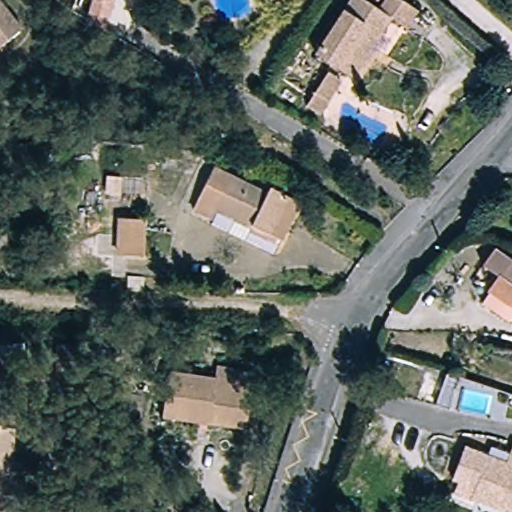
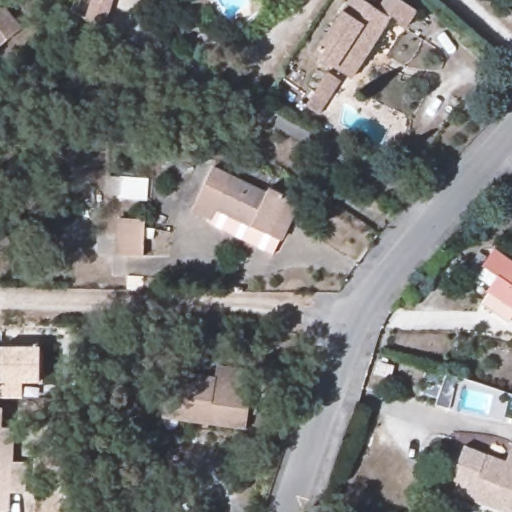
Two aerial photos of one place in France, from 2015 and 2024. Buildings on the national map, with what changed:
unchanged [(79,25),(93,0),(119,0),(99,36),(79,25)]
unchanged [(284,0),(266,2),(266,0),(284,0)]
unchanged [(354,0),(359,0),(380,13),(388,0),(397,0),(417,14),(405,31),(393,24),(374,52),(353,83),(347,79),(316,57),(354,0)]
unchanged [(23,37),(0,53),(0,8),(23,37)]
new [(327,77),(340,85),(321,116),(308,109),(327,77)]
unchanged [(267,194),(270,188),(299,202),(273,255),(211,225),(214,220),(193,210),(214,168),(267,194)]
unchanged [(144,256),(130,256),(120,255),(121,219),(146,219),(144,256)]
unchanged [(480,301),(499,275),(482,263),(493,246),(511,259),(510,260),(512,262),(512,313),(507,320),(480,301)]
unchanged [(143,277),(143,291),(128,292),(128,277),(143,277)]
new [(41,346),(40,381),(23,382),(23,397),(0,397),(0,346),(41,346)]
unchanged [(56,375),(57,346),(81,346),(79,375),(56,375)]
unchanged [(214,380),(216,368),(255,374),(245,428),(163,417),(169,374),(214,380)]
unchanged [(1,410),(1,429),(12,429),(12,463),(25,463),(23,493),(9,493),(8,511),(0,511),(0,409),(1,410)]
unchanged [(443,475),(454,441),(495,456),(502,437),(512,441),(512,512),(507,512),(443,490),(448,477),(443,475)]

